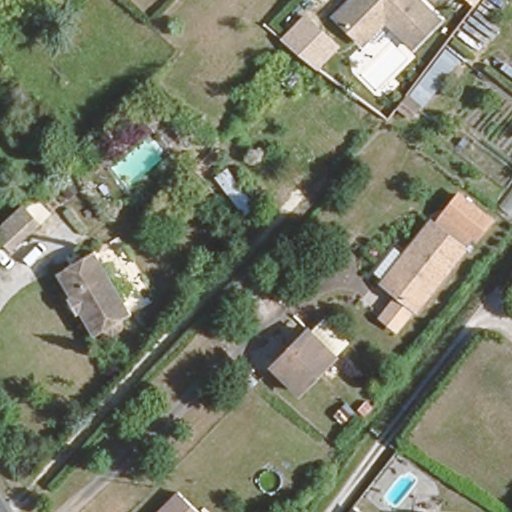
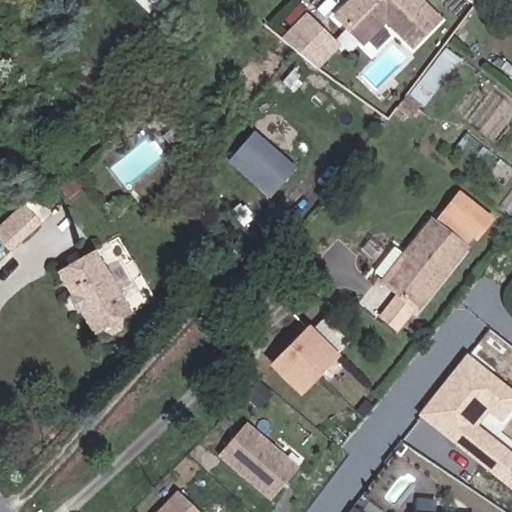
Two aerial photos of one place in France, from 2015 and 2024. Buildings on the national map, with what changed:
unchanged [(412,52),(386,25),(362,47),(337,19),(358,0),(415,0),(440,27),(412,52)]
new [(471,0),(478,0),(475,4),(471,0)]
unchanged [(321,70),(281,38),(305,12),(341,48),(321,70)]
unchanged [(405,96),(441,49),(452,57),(416,104),(405,96)]
new [(229,162),(255,132),(296,169),(268,199),(229,162)]
unchanged [(472,236),(443,213),(464,187),(493,210),(472,236)]
unchanged [(0,230),(15,216),(26,206),(42,225),(31,235),(11,253),(0,240),(0,230)]
unchanged [(381,317),(401,293),(368,265),(391,239),(402,250),(430,215),(465,245),(415,306),(413,305),(395,328),(381,317)]
unchanged [(86,336),(57,267),(99,250),(128,319),(86,336)]
unchanged [(271,375),(307,338),(335,367),(300,402),(271,375)]
new [(478,425),(512,453),(512,492),(417,417),(467,355),(512,391),(512,411),(501,424),(488,413),(478,425)]
new [(298,467),(270,501),(216,457),(246,423),(298,467)]
unchanged [(175,495),(193,512),(159,512),(175,495)]
unchanged [(356,508),(361,512),(353,512),(356,508)]

